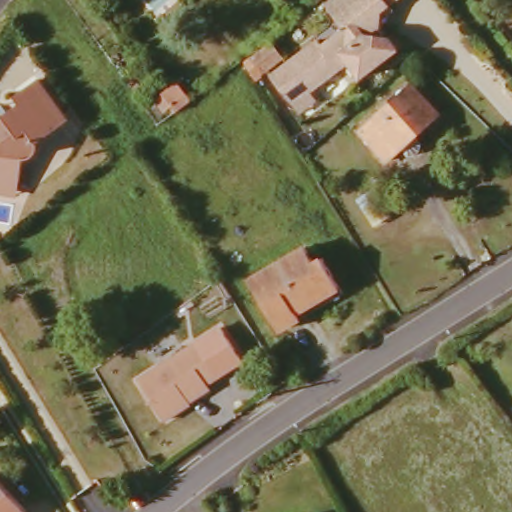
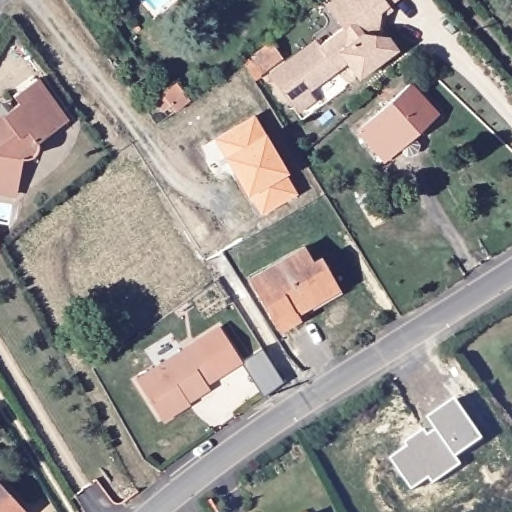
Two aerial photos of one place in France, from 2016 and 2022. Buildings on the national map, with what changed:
unchanged [(321,46),(345,30),(326,3),(331,0),(401,0),(384,13),(379,39),(389,40),(397,52),(360,79),(349,63),(292,105),(270,75),(318,41),(321,46)]
unchanged [(249,61),(270,46),(280,60),(259,76),(249,61)]
unchanged [(19,107),(25,103),(20,95),(45,78),(72,121),(42,141),(19,107)]
unchanged [(362,125),(415,84),(438,113),(384,155),(362,125)]
unchanged [(156,99),(162,94),(164,95),(178,85),(190,101),(175,112),(171,106),(165,111),(156,99)]
unchanged [(0,119),(19,107),(42,141),(40,142),(40,147),(39,152),(37,154),(34,156),(27,156),(22,182),(20,193),(0,191),(0,119)]
new [(217,140),(255,118),(290,175),(287,178),(297,195),(265,213),(255,195),(252,197),(217,140)]
unchanged [(358,195),(371,185),(387,209),(375,218),(358,195)]
unchanged [(257,281),(309,247),(317,259),(325,253),(345,288),(285,328),(257,281)]
unchanged [(180,411),(154,428),(129,388),(208,335),(231,368),(195,391),(200,398),(180,411)]
new [(422,429),(427,435),(435,428),(425,417),(452,397),(482,435),(456,455),(462,462),(435,483),(430,478),(414,491),(397,471),(407,463),(397,450),(422,429)]
unchanged [(0,496),(13,512),(0,512),(0,496)]

